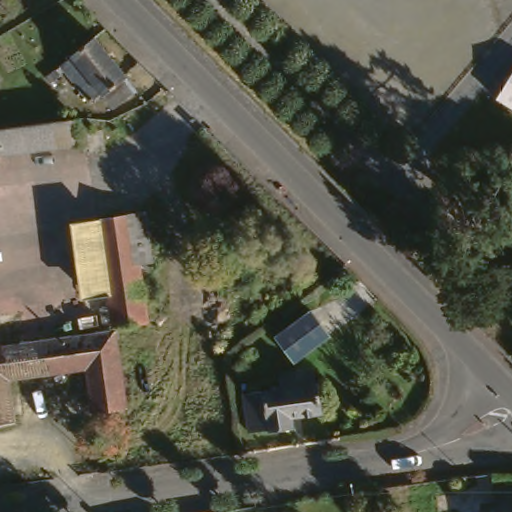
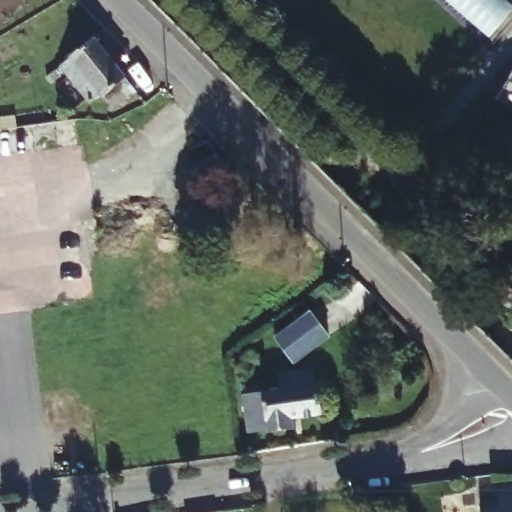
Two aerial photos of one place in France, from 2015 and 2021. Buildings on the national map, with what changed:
new [(512,7),(512,10),(488,38),(445,0),(503,0),(512,7)]
unchanged [(126,77),(125,78),(135,91),(112,110),(100,95),(89,104),(63,72),(60,75),(61,77),(50,84),(45,78),(60,67),(70,57),(94,38),(126,77)]
unchanged [(512,76),(512,108),(497,99),(512,76)]
unchanged [(32,125),(77,119),(80,144),(0,155),(0,130),(32,125)]
demolished [(128,217),(128,215),(144,213),(151,263),(137,265),(145,323),(114,327),(109,296),(99,220),(128,217)]
unchanged [(270,340),(306,313),(323,337),(287,364),(270,340)]
demolished [(124,408),(92,412),(87,369),(7,380),(13,423),(0,425),(0,349),(24,345),(114,333),(124,408)]
unchanged [(310,385),(312,384),(316,414),(286,419),(288,428),(263,432),(262,431),(242,434),(237,395),(278,389),(277,383),(276,374),(283,373),(307,370),(310,385)]
unchanged [(496,483),(512,481),(512,512),(481,512),(479,501),(499,498),(496,483)]

